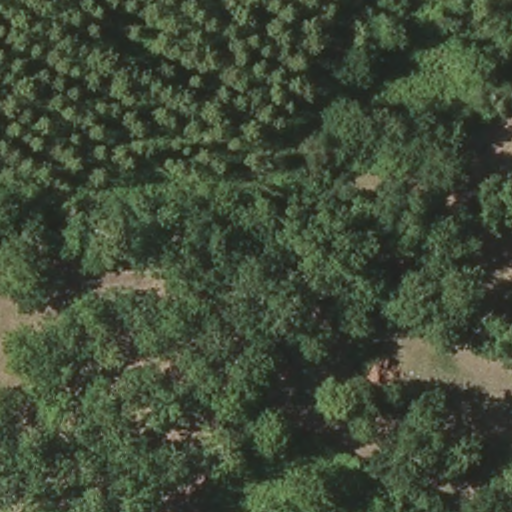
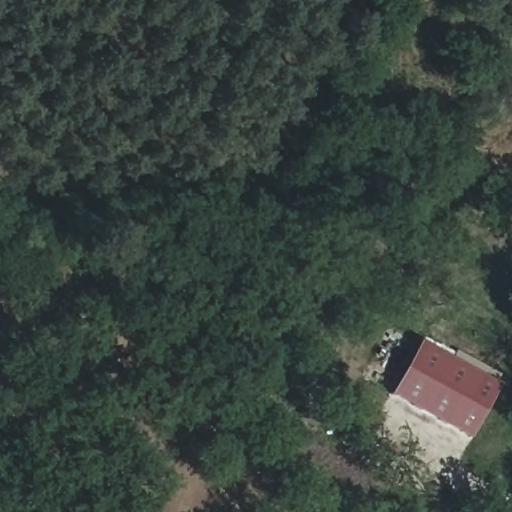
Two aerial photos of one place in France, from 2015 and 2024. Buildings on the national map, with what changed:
new [(500,383),(470,437),(391,394),(421,339),(500,383)]

